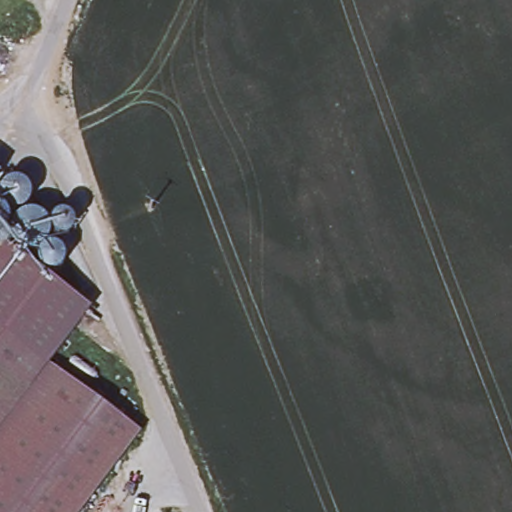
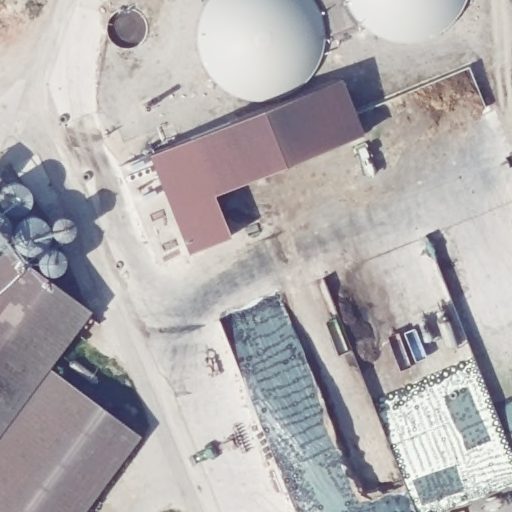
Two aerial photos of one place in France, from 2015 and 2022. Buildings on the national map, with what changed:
new [(324,52),(319,64),(314,75),(306,84),(296,92),(286,97),(274,102),(261,102),(249,102),(238,97),(226,92),(217,84),(209,75),(203,64),(199,52),(198,40),(199,27),(203,16),(209,5),(213,0),(310,0),(314,5),(319,16),(324,27),(324,40),(324,52)]
new [(469,7),(462,18),(454,29),(444,37),(432,43),(419,47),(407,48),(394,47),(381,43),(369,37),(359,29),(351,18),(344,7),(343,0),(470,0),(469,7)]
new [(365,137),(216,197),(231,239),(191,256),(151,158),(344,82),(365,137)]
unchanged [(26,211),(19,214),(12,214),(5,210),(1,204),(0,197),(4,189),(10,185),(18,184),(25,187),(29,191),(31,199),(29,206),(26,211)]
unchanged [(2,212),(8,218),(9,225),(8,232),(5,237),(0,241),(0,211),(2,212)]
unchanged [(65,263),(62,271),(55,276),(49,276),(42,272),(39,268),(38,262),(39,256),(42,252),(36,254),(30,255),(24,253),(16,247),(13,241),(13,234),(14,226),(19,220),(28,216),(32,216),(40,218),(46,223),(49,229),(50,237),(49,243),(43,251),(45,250),(52,248),(55,249),(60,252),(65,258),(65,263)]
unchanged [(3,247),(86,309),(45,365),(0,427),(0,251),(3,247)]
unchanged [(76,512),(0,512),(0,427),(45,365),(134,432),(76,512)]

